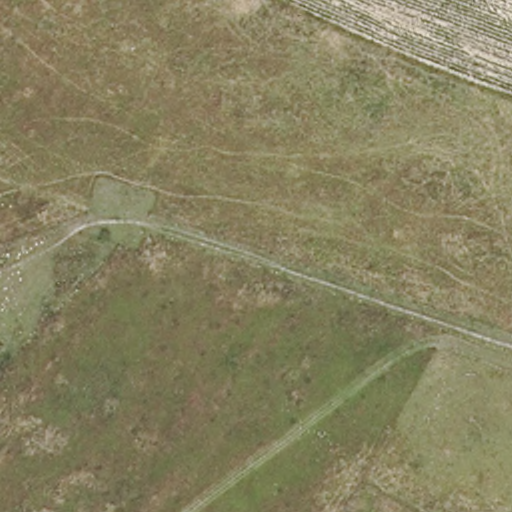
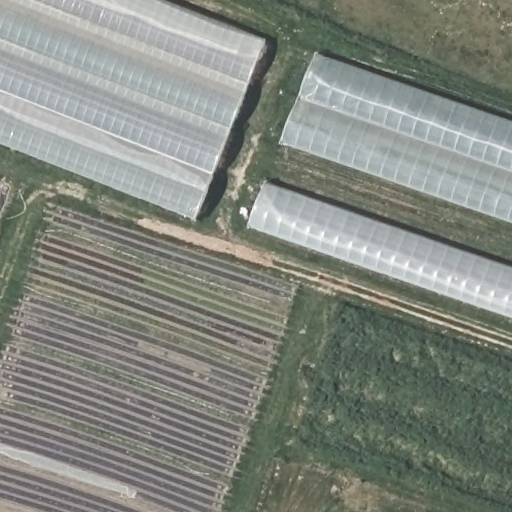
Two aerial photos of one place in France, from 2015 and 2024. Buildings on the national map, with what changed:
new [(0,144),(0,0),(163,0),(266,40),(195,221),(0,144)]
new [(512,125),(512,222),(282,140),(310,56),(512,125)]
new [(265,184),(512,269),(512,317),(250,227),(265,184)]

